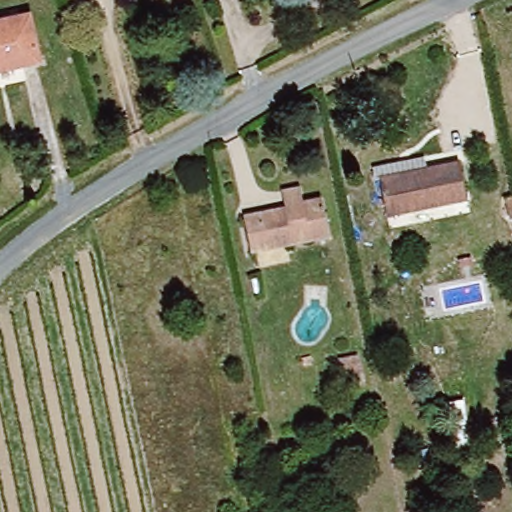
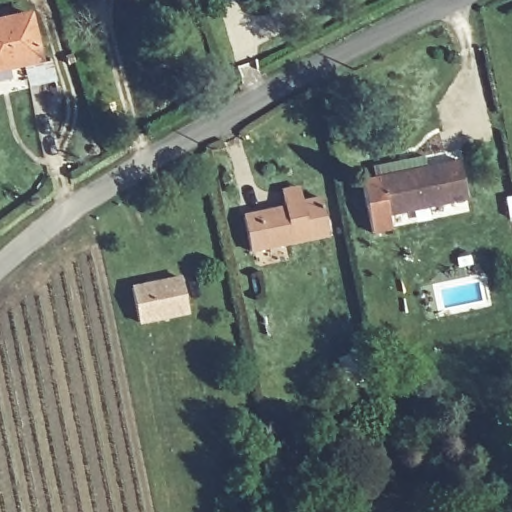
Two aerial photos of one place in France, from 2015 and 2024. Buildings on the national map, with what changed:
unchanged [(29,15),(39,61),(23,65),(27,80),(0,86),(0,22),(29,15)]
unchanged [(459,162),(467,199),(387,216),(379,180),(375,180),(372,167),(424,156),(426,170),(459,162)]
unchanged [(250,252),(243,217),(260,214),(285,209),(283,199),(282,192),(300,188),(301,195),(302,202),(321,199),(329,237),(250,252)]
unchanged [(512,198),(512,218),(509,219),(506,200),(512,198)]
unchanged [(458,260),(470,257),(472,265),(460,268),(458,260)]
new [(187,312),(138,322),(131,287),(180,277),(187,312)]
unchanged [(343,378),(340,366),(338,360),(357,355),(358,361),(361,374),(343,378)]

